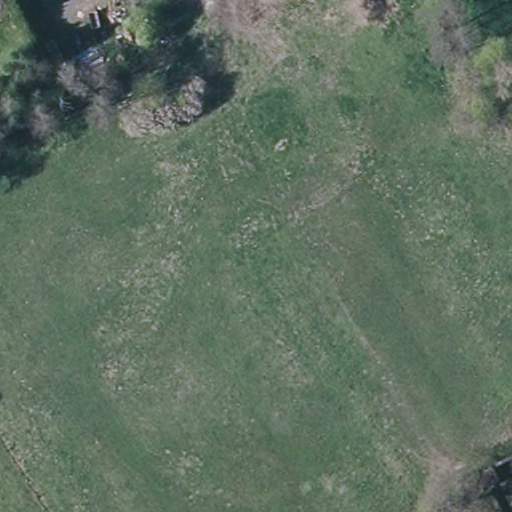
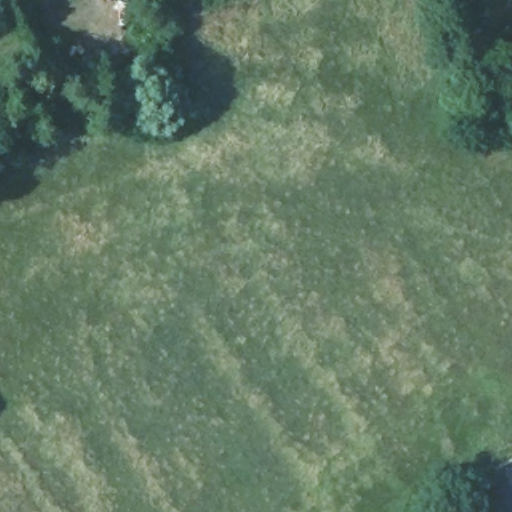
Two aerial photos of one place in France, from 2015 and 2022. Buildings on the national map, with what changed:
unchanged [(411,6),(420,24),(403,33),(393,15),(411,6)]

